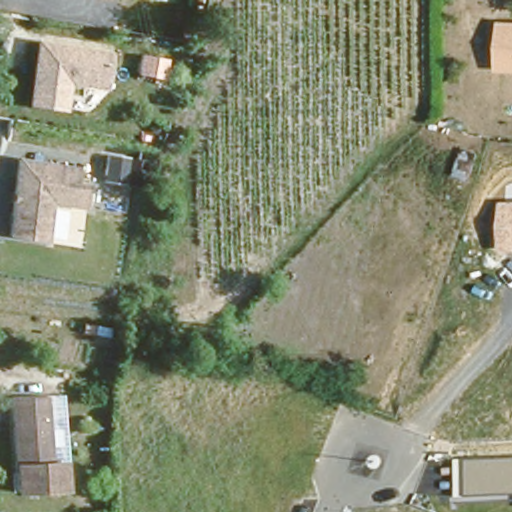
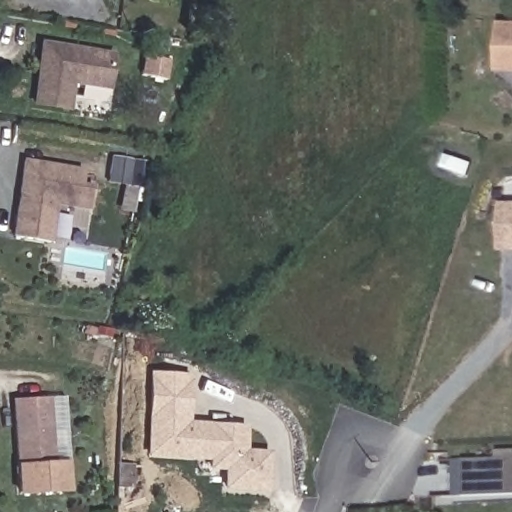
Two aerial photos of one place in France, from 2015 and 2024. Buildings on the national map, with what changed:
demolished [(57,2),(58,0),(99,0),(98,5),(57,2)]
unchanged [(500,23),(512,24),(512,73),(497,72),(500,23)]
unchanged [(75,85),(69,112),(30,107),(43,41),(117,52),(112,92),(75,85)]
new [(138,211),(118,207),(121,185),(107,182),(112,155),(146,161),(138,211)]
unchanged [(83,179),(79,194),(91,196),(86,218),(50,210),(41,249),(6,240),(24,165),(83,179)]
unchanged [(499,202),(512,202),(512,253),(500,253),(499,202)]
new [(223,470),(207,470),(208,460),(144,457),(150,372),(191,375),(189,422),(248,425),(248,450),(272,451),(270,493),(222,490),(223,470)]
unchanged [(56,451),(71,450),(74,481),(16,486),(8,392),(51,389),(56,451)]
unchanged [(453,495),(452,460),(460,458),(512,457),(512,496),(462,497),(453,495)]

